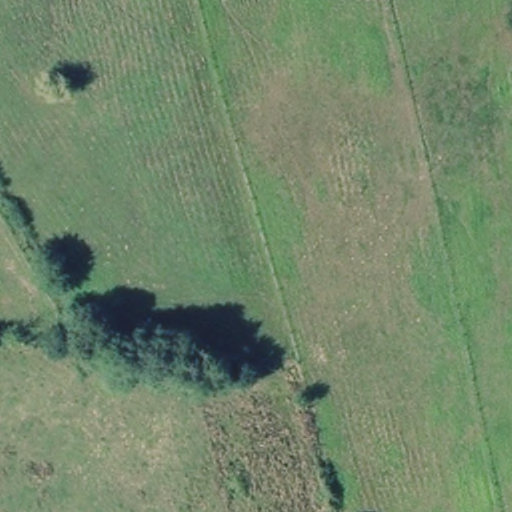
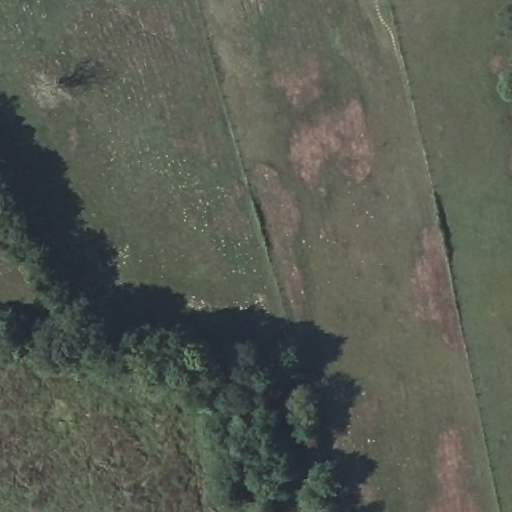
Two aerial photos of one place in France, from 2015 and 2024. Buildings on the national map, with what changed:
[]

